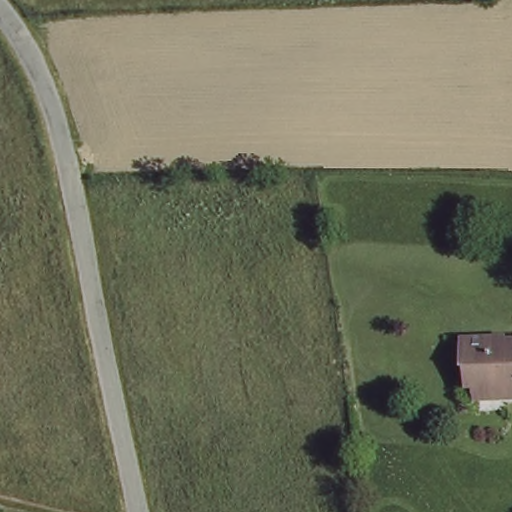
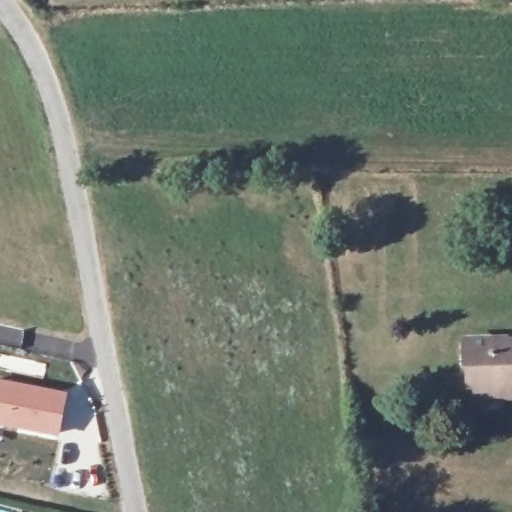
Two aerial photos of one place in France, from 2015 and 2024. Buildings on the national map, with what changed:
unchanged [(476,394),(475,381),(464,380),(462,343),(470,335),(504,333),(504,338),(512,338),(512,393),(500,393),(476,394)]
new [(58,437),(0,425),(0,378),(68,392),(58,437)]

